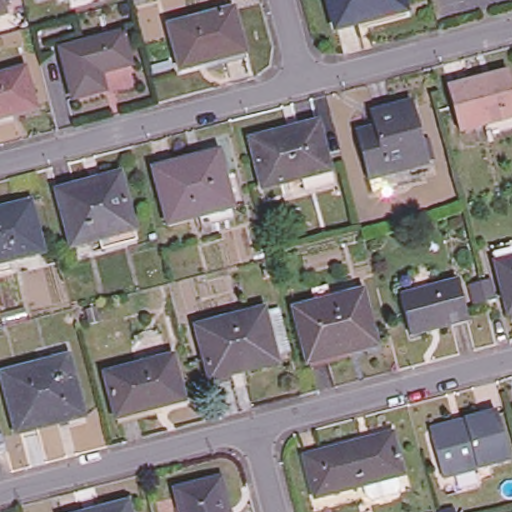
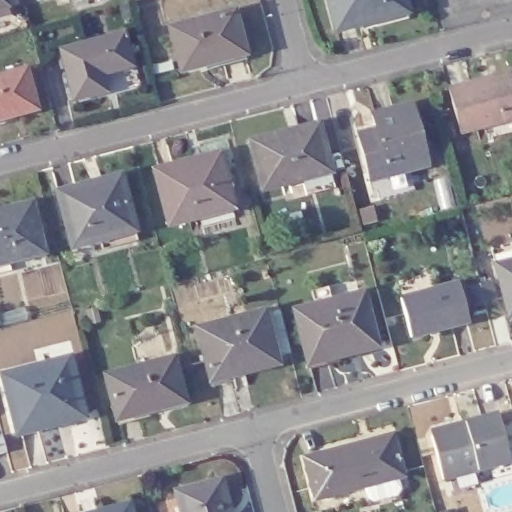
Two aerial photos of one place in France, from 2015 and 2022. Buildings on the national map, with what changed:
unchanged [(8,0),(9,4),(0,6),(0,0),(8,0)]
unchanged [(43,0),(57,0),(44,4),(43,0)]
unchanged [(340,32),(331,0),(407,0),(410,14),(340,32)]
unchanged [(246,54),(183,70),(172,27),(235,11),(246,54)]
unchanged [(132,75),(102,83),(107,100),(74,109),(59,50),(121,34),(132,75)]
unchanged [(42,113),(0,124),(0,83),(32,75),(42,113)]
unchanged [(490,86),(512,80),(512,122),(464,135),(452,90),(488,81),(490,86)]
unchanged [(377,190),(374,177),(360,130),(358,122),(376,117),(375,111),(414,99),(432,161),(413,166),(417,179),(377,190)]
unchanged [(287,130),(290,134),(320,126),(332,169),(267,186),(254,140),(287,130)]
unchanged [(222,155),(238,216),(211,224),(208,212),(172,222),(158,171),(222,155)]
unchanged [(95,181),(97,190),(124,183),(138,237),(104,246),(102,239),(74,246),(59,190),(95,181)]
unchanged [(31,201),(44,249),(0,261),(0,210),(31,201)]
unchanged [(493,269),(512,264),(512,318),(508,319),(493,269)]
unchanged [(407,340),(397,302),(455,287),(465,325),(407,340)]
unchanged [(310,363),(295,309),(363,290),(378,345),(310,363)]
unchanged [(238,364),(243,382),(232,385),(228,374),(207,380),(192,328),(259,310),(272,355),(238,364)]
unchanged [(20,434),(3,375),(70,356),(87,415),(20,434)]
unchanged [(108,374),(173,357),(185,400),(120,417),(108,374)]
unchanged [(452,426),(458,430),(470,426),(468,421),(497,413),(512,461),(445,478),(434,435),(437,430),(452,426)]
unchanged [(397,495),(373,502),(367,498),(363,485),(317,497),(307,459),(357,445),(358,448),(393,439),(402,475),(396,476),(400,490),(397,495)]
unchanged [(220,480),(228,512),(183,512),(177,490),(220,480)]
unchanged [(130,502),(133,512),(96,512),(130,502)]

